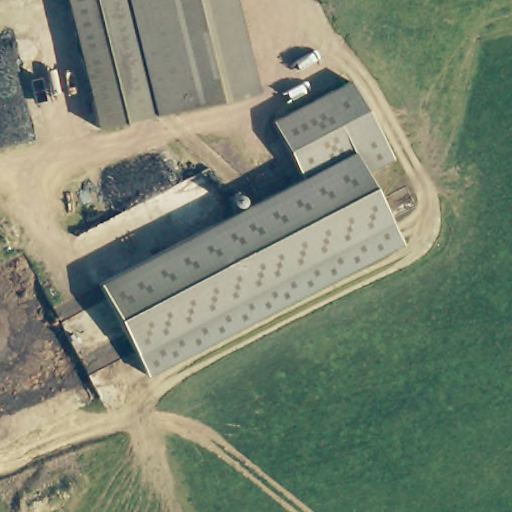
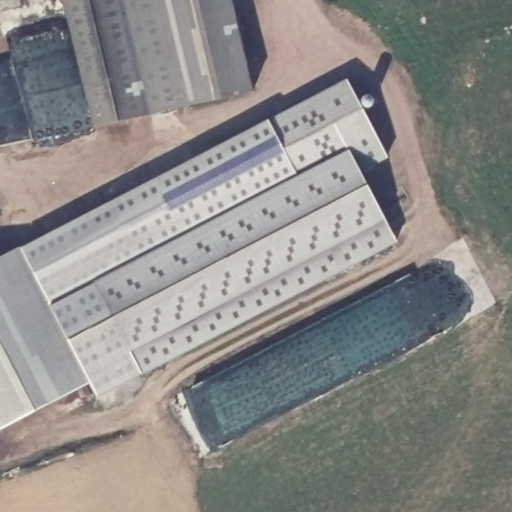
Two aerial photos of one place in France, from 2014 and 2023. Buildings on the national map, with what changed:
unchanged [(151,119),(93,133),(63,0),(122,0),(151,119)]
unchanged [(237,98),(151,119),(122,0),(215,0),(237,98)]
unchanged [(386,157),(358,171),(395,241),(140,374),(93,283),(228,213),(222,196),(232,191),(240,206),(296,177),(267,121),(346,80),(386,157)]
new [(267,121),(296,177),(240,206),(232,191),(222,196),(228,213),(93,283),(50,306),(20,247),(267,121)]
new [(90,384),(0,430),(0,257),(20,247),(50,306),(93,283),(140,374),(96,397),(90,384)]

